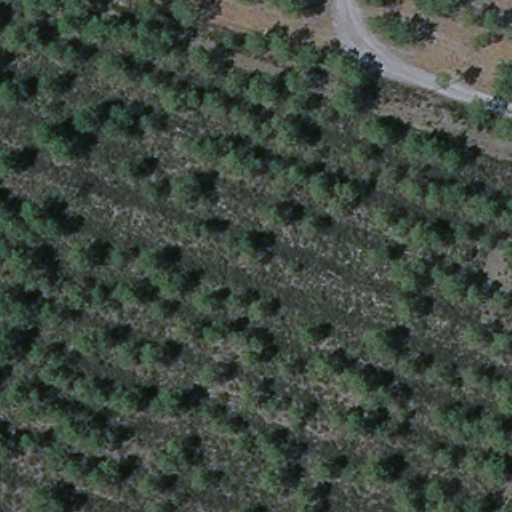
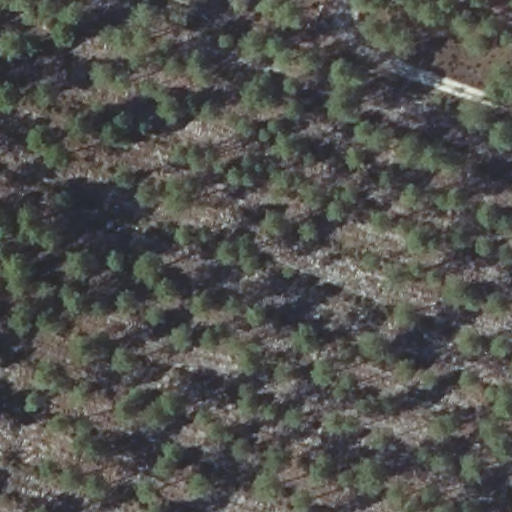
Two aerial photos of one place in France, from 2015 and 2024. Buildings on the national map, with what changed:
[]

